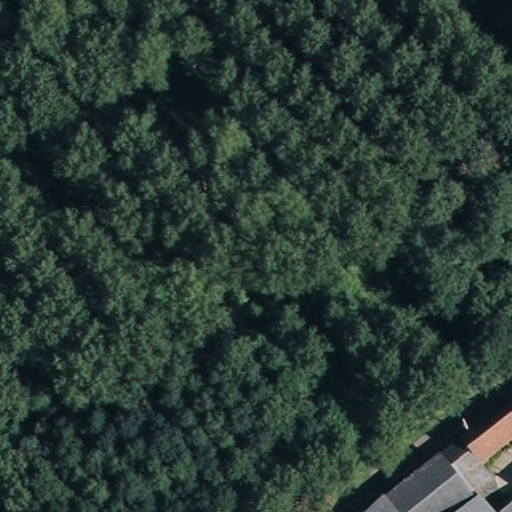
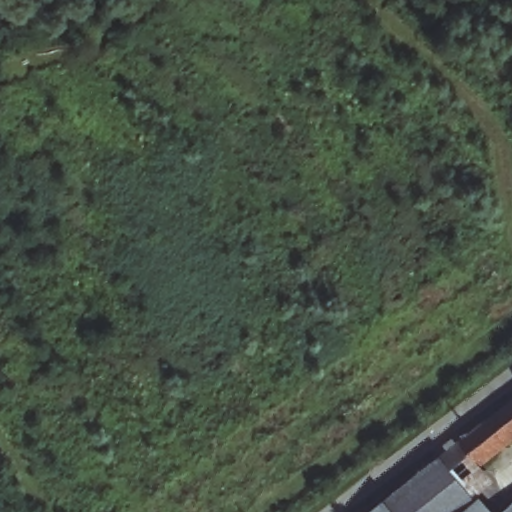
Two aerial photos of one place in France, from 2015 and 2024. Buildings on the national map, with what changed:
unchanged [(512,402),(512,443),(482,468),(461,442),(512,402)]
unchanged [(461,442),(482,468),(493,481),(476,495),(454,470),(443,457),(461,442)]
unchanged [(443,457),(454,470),(476,495),(477,503),(484,512),(396,512),(387,502),(443,457)]
unchanged [(389,512),(376,512),(383,506),(389,512)]
unchanged [(512,512),(508,512),(512,508),(512,512)]

